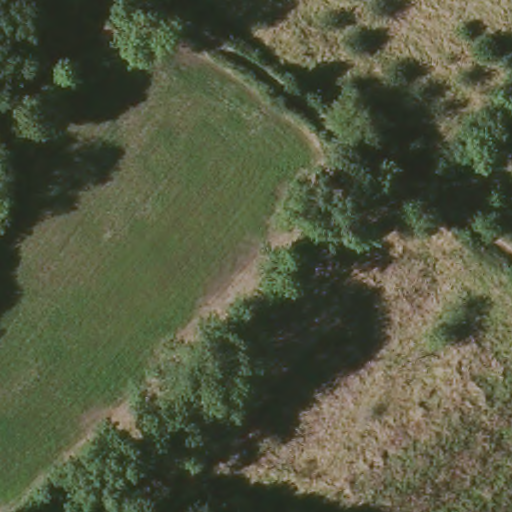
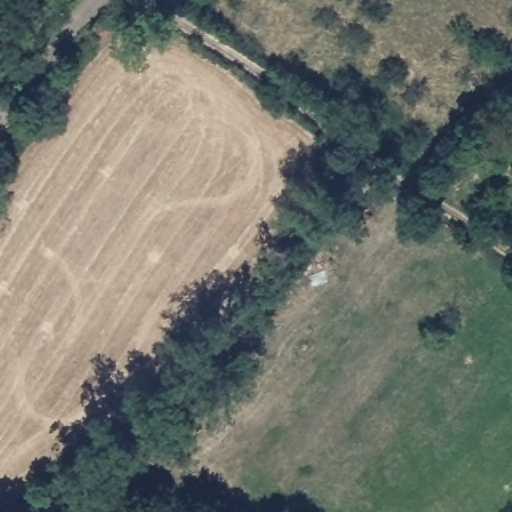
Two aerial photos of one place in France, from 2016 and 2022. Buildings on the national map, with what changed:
unchanged [(118,27),(103,45),(84,32),(100,13),(118,27)]
unchanged [(475,135),(490,146),(462,171),(452,157),(475,135)]

